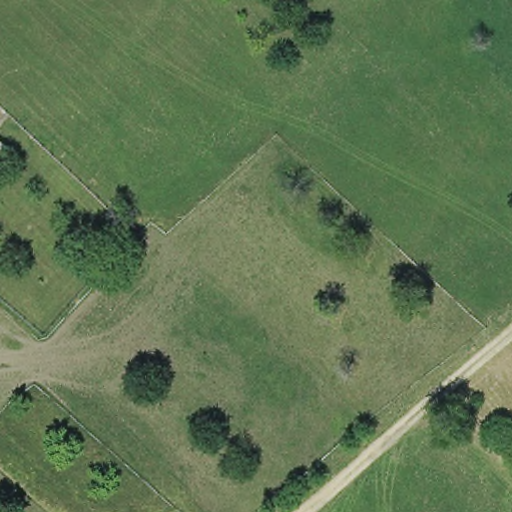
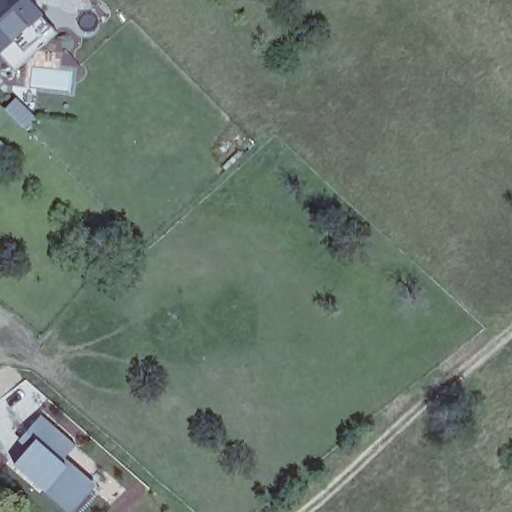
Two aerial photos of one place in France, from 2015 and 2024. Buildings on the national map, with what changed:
new [(0,57),(0,0),(26,0),(39,15),(51,29),(56,35),(14,72),(0,57)]
new [(71,445),(60,458),(90,483),(68,510),(13,461),(28,444),(21,437),(38,417),(71,445)]

